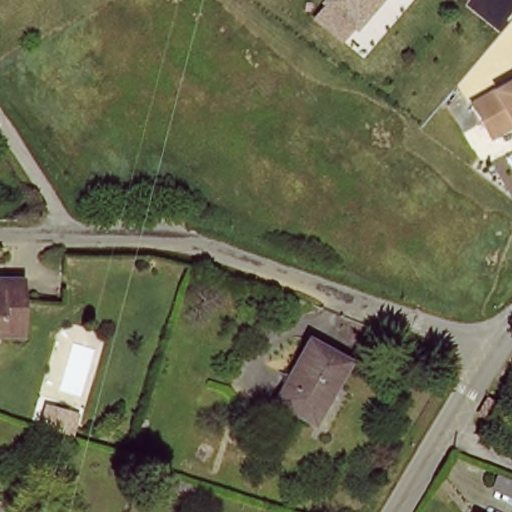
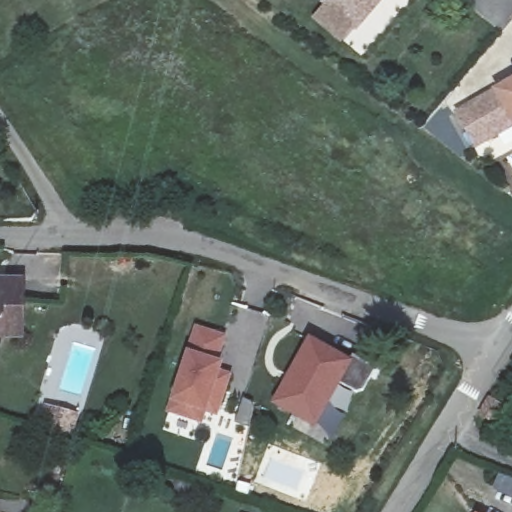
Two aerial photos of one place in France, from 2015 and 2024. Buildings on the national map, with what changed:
unchanged [(353,33),(322,6),(328,0),(382,0),(353,33)]
unchanged [(505,142),(484,109),(512,91),(512,138),(505,142)]
unchanged [(21,278),(20,336),(0,336),(0,278),(21,278)]
new [(223,370),(235,375),(218,419),(206,415),(203,427),(167,414),(169,403),(188,351),(198,325),(228,337),(221,362),(225,363),(223,370)]
unchanged [(346,361),(306,424),(266,399),(306,334),(346,361)]

